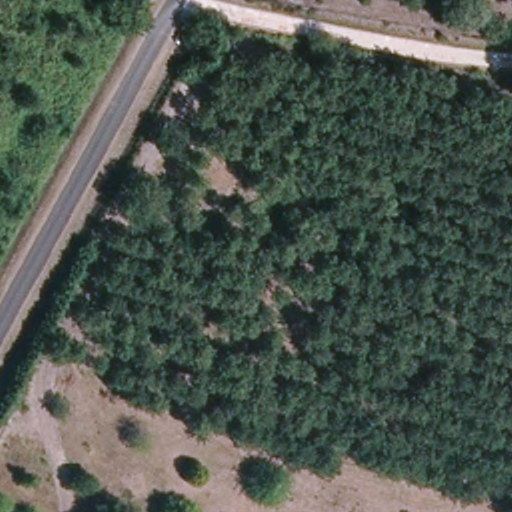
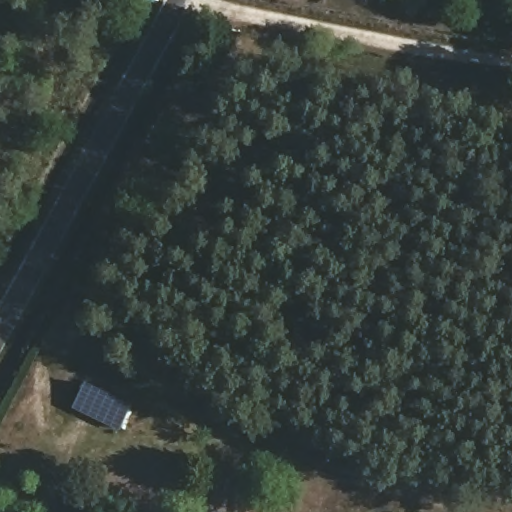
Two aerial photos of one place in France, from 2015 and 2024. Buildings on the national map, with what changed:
new [(125,404),(112,429),(66,405),(79,380),(125,404)]

